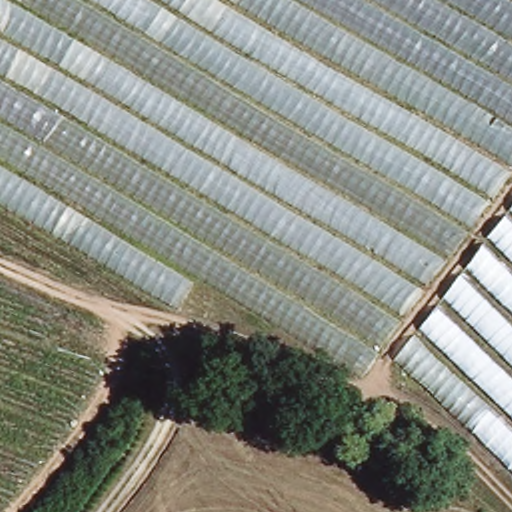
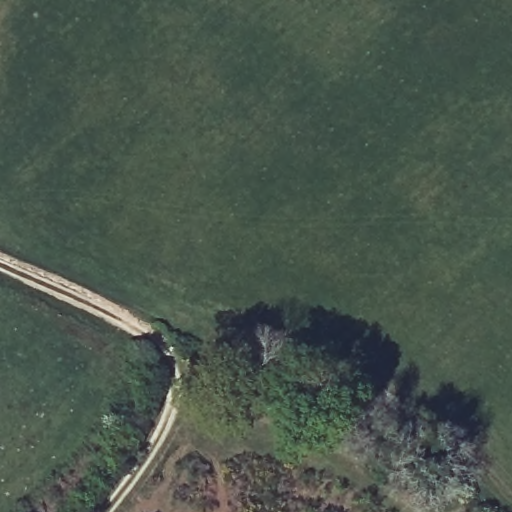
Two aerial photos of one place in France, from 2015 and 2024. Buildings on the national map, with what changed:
demolished [(368,375),(204,277),(182,312),(0,201),(0,0),(512,0),(512,476),(383,349),(368,375)]
demolished [(55,313),(44,343),(107,369),(0,509),(0,294),(55,313)]

